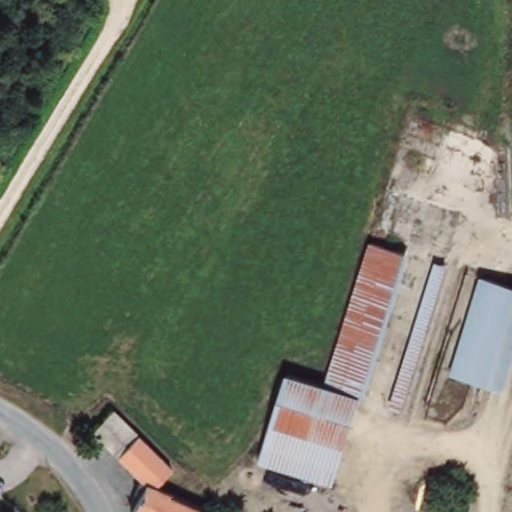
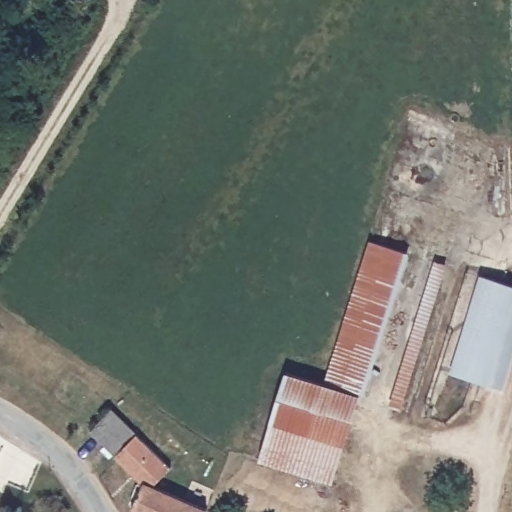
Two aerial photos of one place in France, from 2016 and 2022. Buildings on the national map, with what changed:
unchanged [(286,380),(323,390),(368,249),(401,258),(356,403),(343,448),(330,487),(258,463),(270,427),(286,380)]
unchanged [(448,262),(403,410),(391,405),(438,260),(448,262)]
unchanged [(459,372),(491,278),(512,285),(512,337),(496,384),(459,372)]
unchanged [(178,472),(161,487),(140,480),(85,427),(105,404),(178,472)]
unchanged [(207,507),(205,512),(133,512),(127,510),(140,480),(161,487),(207,507)]

